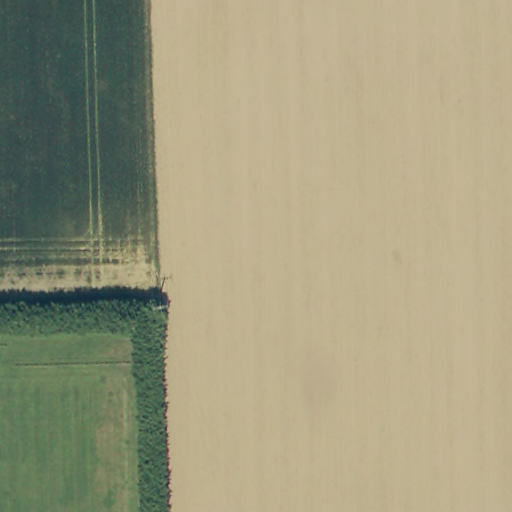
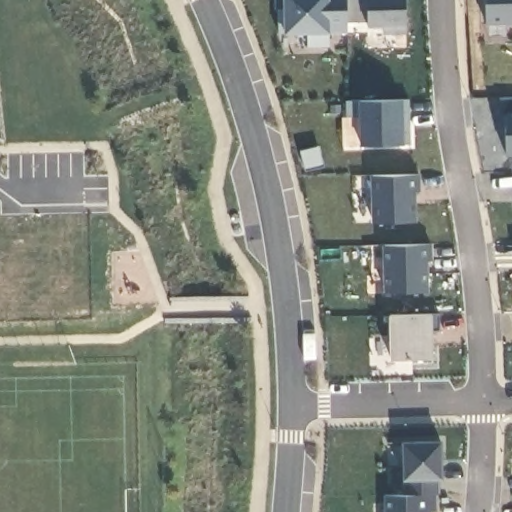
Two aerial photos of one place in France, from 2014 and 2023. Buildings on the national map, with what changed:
new [(405,27),(405,35),(379,35),(378,27),(369,27),(368,22),(350,22),(348,35),(328,35),(328,47),(307,47),(305,34),(283,34),(283,0),(406,0),(405,27)]
new [(486,0),(512,0),(512,25),(486,26),(486,0)]
new [(405,146),(360,147),(359,116),(345,116),(344,100),(359,100),(405,100),(405,146)]
new [(418,191),(414,192),(415,223),(372,225),(371,176),(417,174),(418,191)]
new [(430,261),(427,261),(427,290),(384,291),(383,245),(431,245),(430,261)]
new [(431,358),(388,360),(387,315),(430,315),(431,358)]
new [(435,481),(436,494),(433,495),(433,511),(426,511),(426,512),(383,512),(382,495),(402,495),(402,480),(402,441),(441,440),(442,481),(435,481)]

